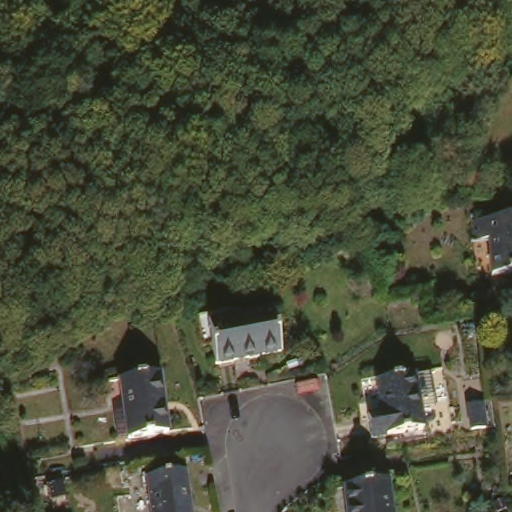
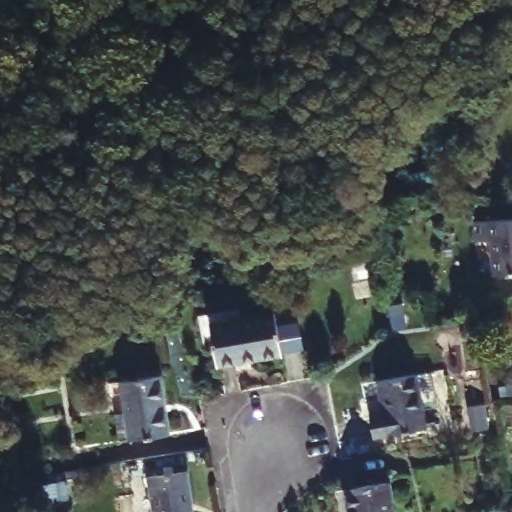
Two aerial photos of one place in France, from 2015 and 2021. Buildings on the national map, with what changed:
unchanged [(486,242),(472,243),(471,220),(512,218),(512,274),(489,276),(486,242)]
unchanged [(280,349),(216,360),(209,318),(273,307),(280,349)]
unchanged [(174,428),(122,436),(115,377),(165,371),(174,428)]
unchanged [(424,428),(371,437),(367,416),(382,412),(377,381),(414,375),(424,428)]
unchanged [(489,427),(474,430),(468,406),(483,402),(489,427)]
unchanged [(151,512),(146,477),(186,472),(192,512),(151,512)]
unchanged [(347,512),(344,489),(388,482),(392,512),(347,512)]

